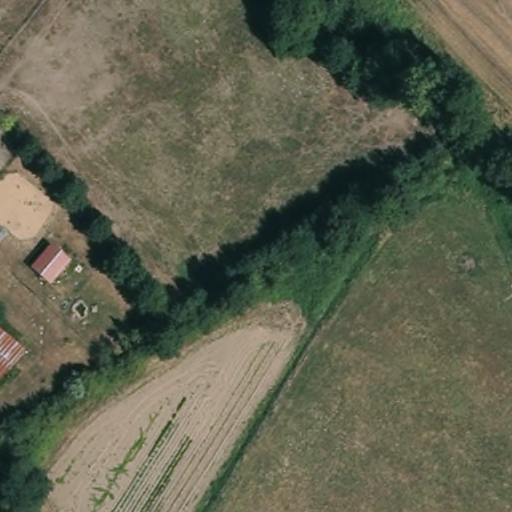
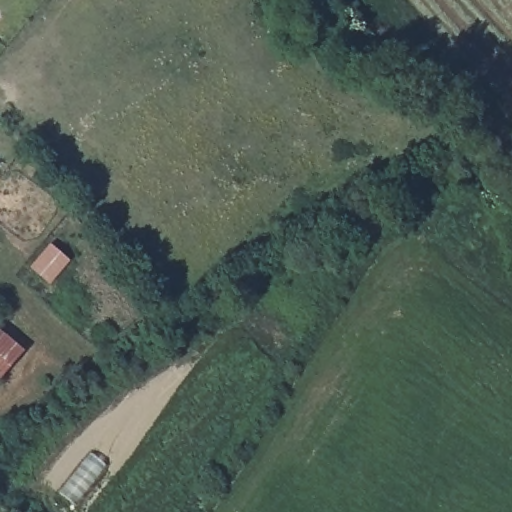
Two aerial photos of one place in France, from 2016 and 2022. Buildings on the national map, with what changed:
unchanged [(91,247),(70,276),(59,266),(80,240),(91,247)]
unchanged [(28,351),(0,386),(0,327),(28,351)]

